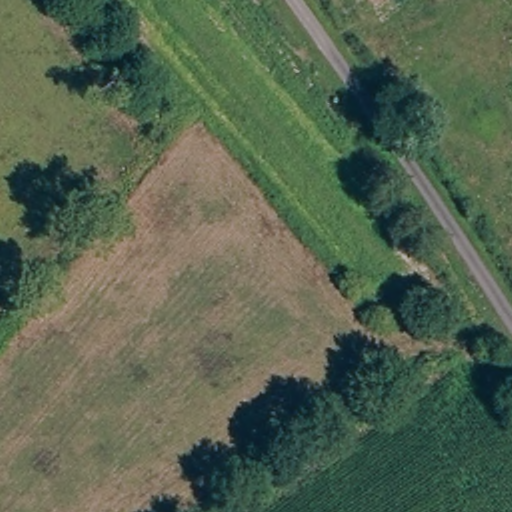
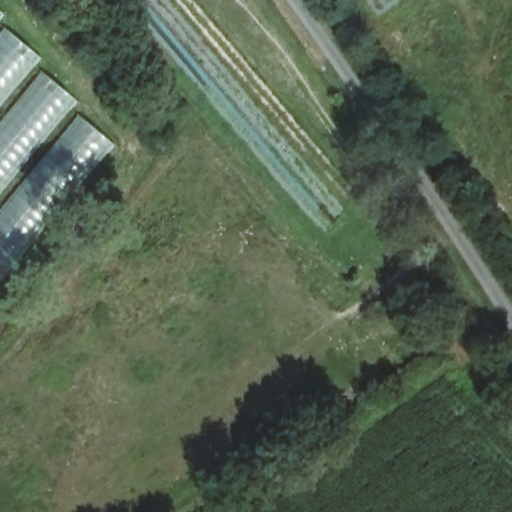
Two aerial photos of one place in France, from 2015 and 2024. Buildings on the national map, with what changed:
new [(6,14),(0,22),(0,9),(6,14)]
new [(4,26),(43,58),(0,109),(0,31),(4,26)]
new [(42,71),(79,102),(34,151),(0,195),(0,124),(42,71)]
new [(28,175),(77,113),(116,145),(60,207),(29,247),(0,280),(0,209),(28,175)]

